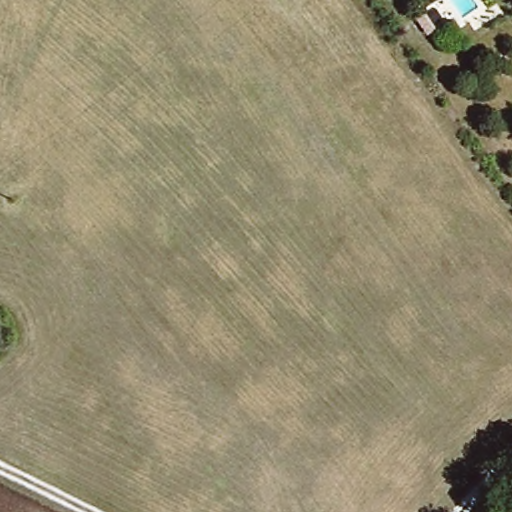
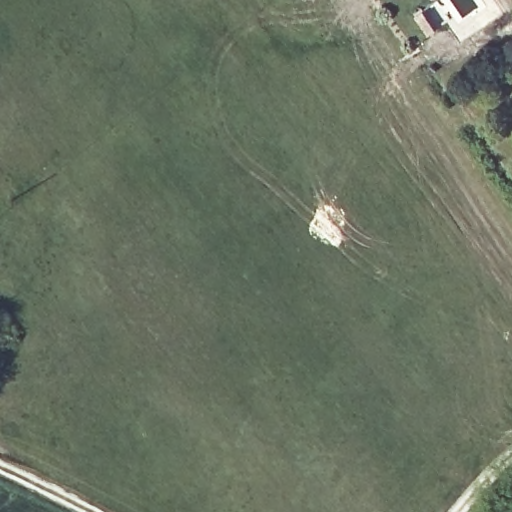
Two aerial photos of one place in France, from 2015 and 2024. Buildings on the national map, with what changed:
unchanged [(407,59),(392,41),(400,35),(416,52),(407,59)]

